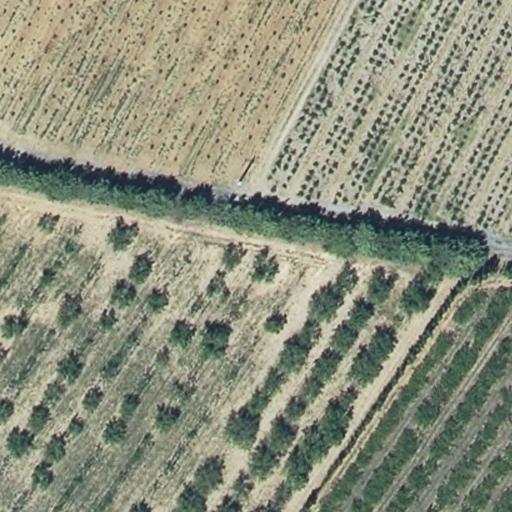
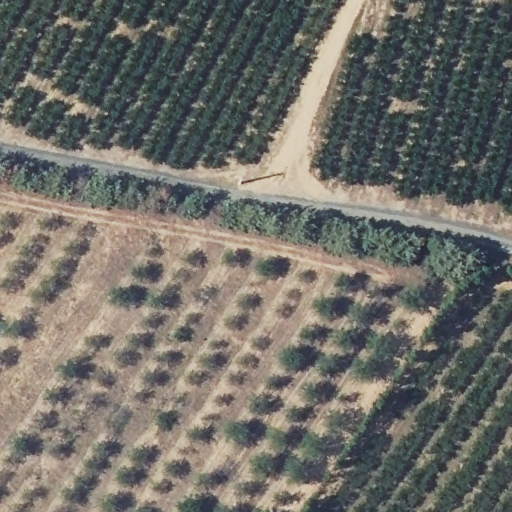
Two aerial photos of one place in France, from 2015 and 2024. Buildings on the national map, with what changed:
[]

